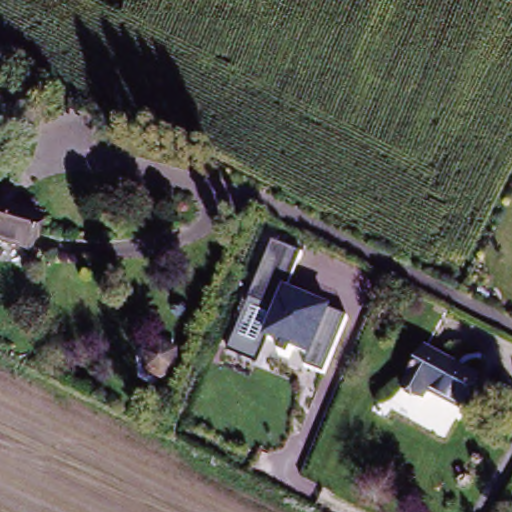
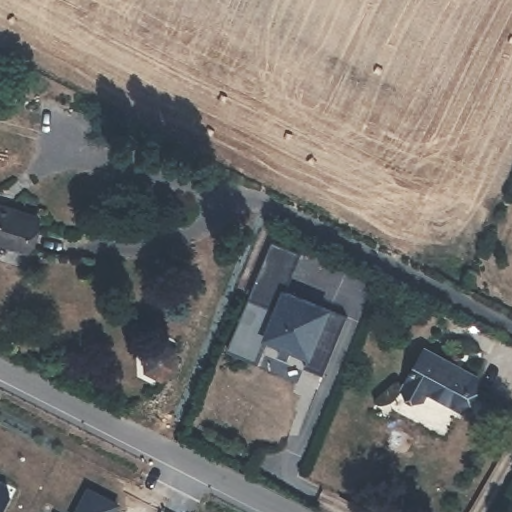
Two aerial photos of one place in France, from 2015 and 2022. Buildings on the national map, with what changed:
unchanged [(20,247),(0,236),(0,200),(35,218),(20,247)]
unchanged [(303,253),(287,289),(347,316),(322,373),(305,364),(307,359),(263,339),(275,308),(250,297),(273,240),(303,253)]
unchanged [(188,376),(172,386),(156,378),(155,359),(171,349),(187,357),(188,376)]
unchanged [(267,365),(260,362),(267,349),(273,353),(267,365)]
unchanged [(430,388),(425,397),(405,387),(425,349),(475,375),(461,403),(430,388)]
new [(7,488),(10,495),(2,512),(0,512),(0,484),(7,488)]
new [(116,504),(111,512),(75,512),(87,489),(116,504)]

